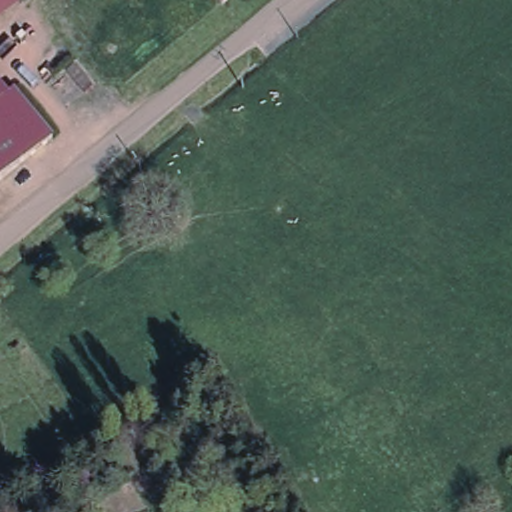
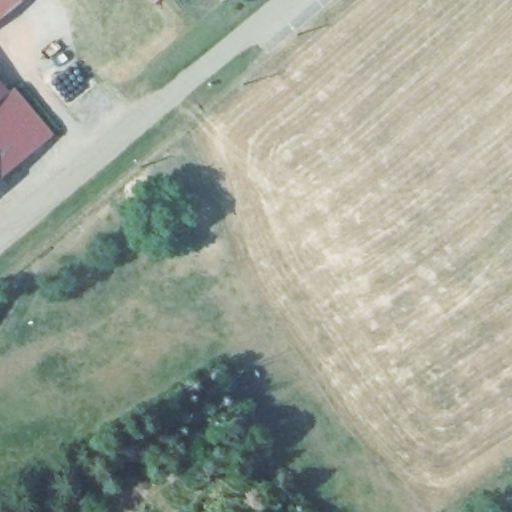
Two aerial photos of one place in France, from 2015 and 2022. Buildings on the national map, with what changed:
unchanged [(0,14),(0,0),(18,0),(0,14)]
unchanged [(12,91),(50,136),(21,160),(0,177),(0,101),(12,91)]

